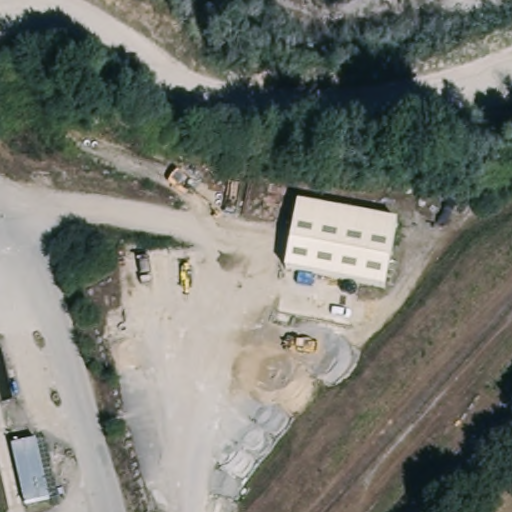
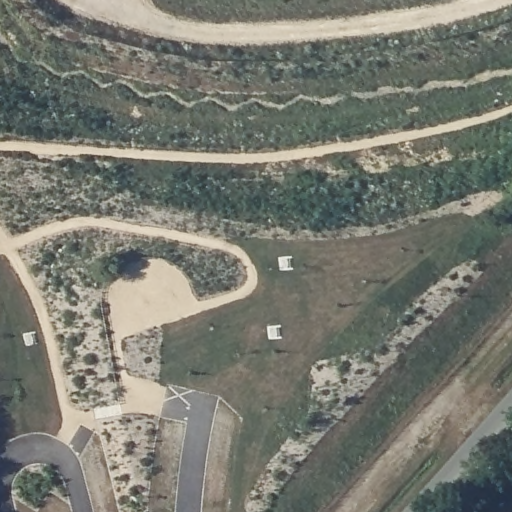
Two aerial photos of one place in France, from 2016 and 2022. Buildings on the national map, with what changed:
demolished [(399,222),(387,288),(285,269),(297,203),(399,222)]

